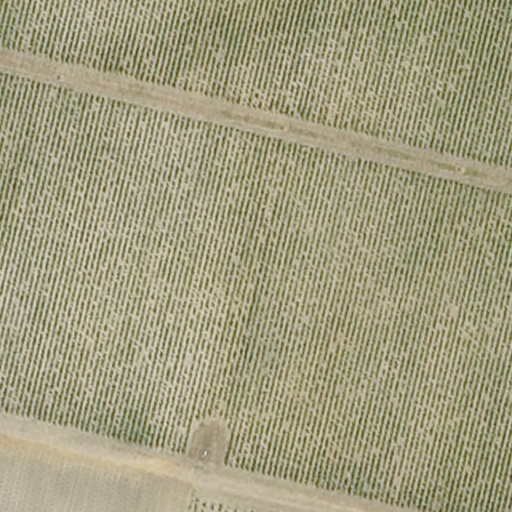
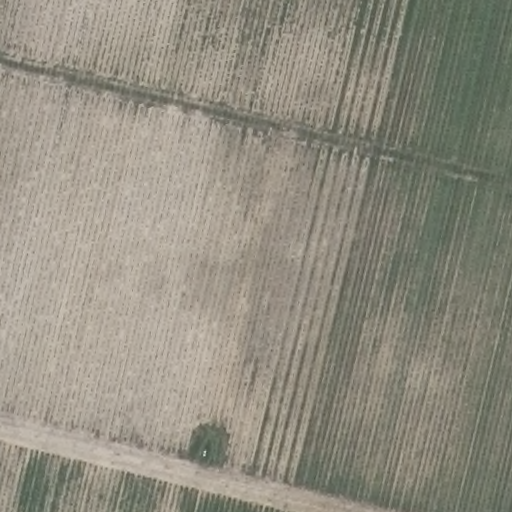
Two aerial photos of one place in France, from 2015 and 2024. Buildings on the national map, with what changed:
[]

